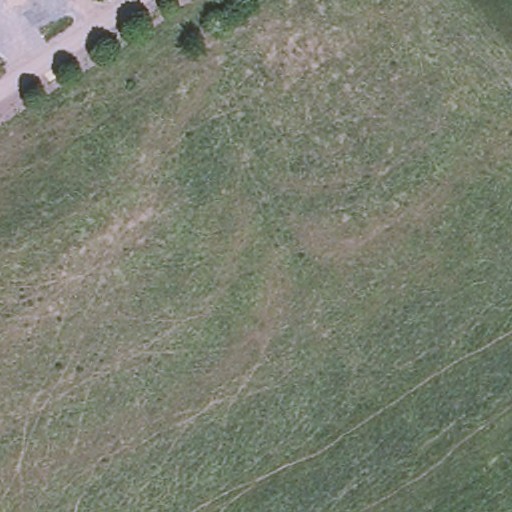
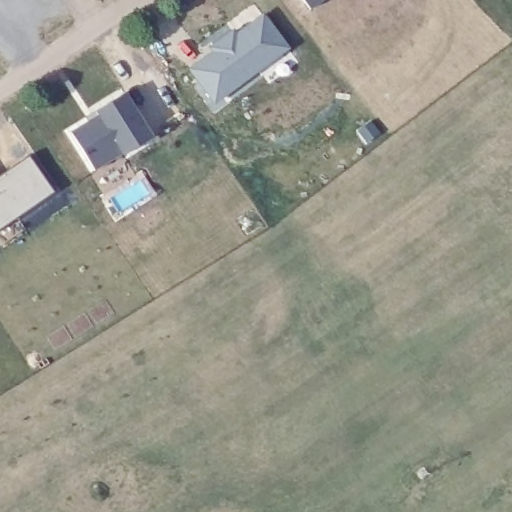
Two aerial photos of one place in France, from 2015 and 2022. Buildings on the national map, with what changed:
new [(305,0),(324,0),(312,9),(305,0)]
new [(215,51),(213,45),(237,30),(241,33),(267,16),(293,52),(218,103),(191,69),(215,51)]
new [(130,91),(158,138),(125,157),(123,153),(97,169),(72,131),(99,115),(96,111),(130,91)]
new [(29,156),(55,192),(0,229),(0,175),(29,156)]

